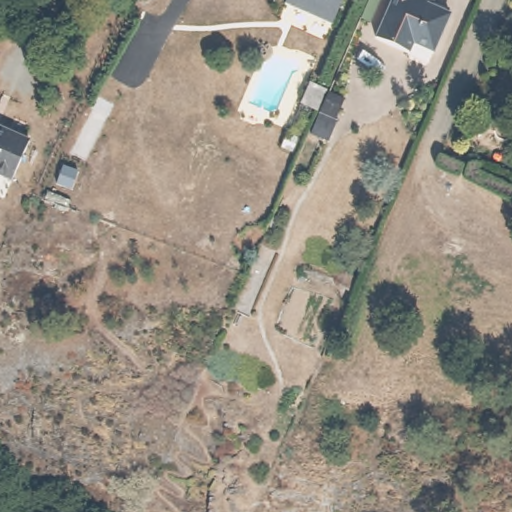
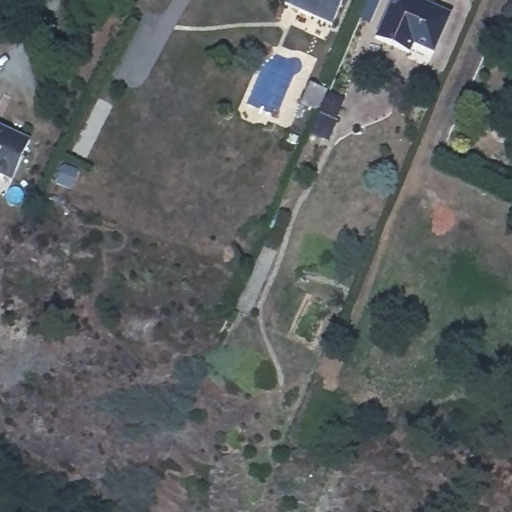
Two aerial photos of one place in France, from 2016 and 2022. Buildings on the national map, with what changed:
unchanged [(286,4),(289,0),(343,0),(336,14),(330,25),(313,17),(286,4)]
unchanged [(418,34),(410,44),(379,27),(393,0),(437,0),(455,10),(440,44),(418,34)]
unchanged [(0,172),(0,125),(32,140),(15,179),(0,172)]

